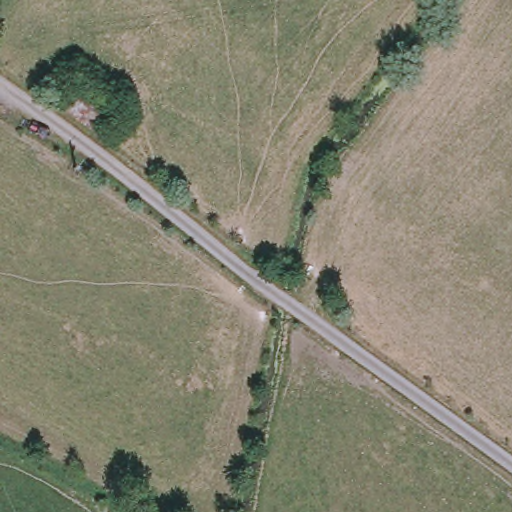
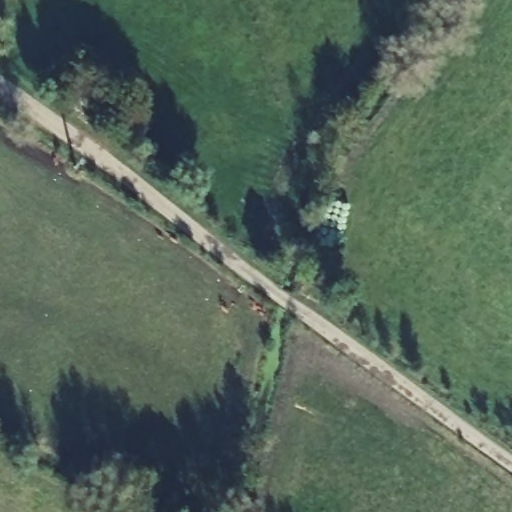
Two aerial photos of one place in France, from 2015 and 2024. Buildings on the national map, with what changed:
unchanged [(77,81),(121,117),(101,144),(57,111),(77,81)]

